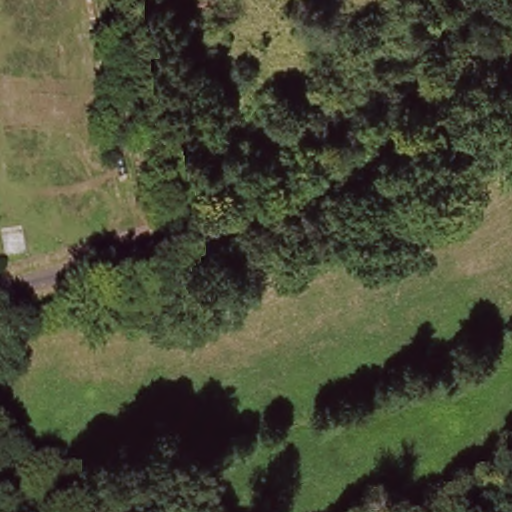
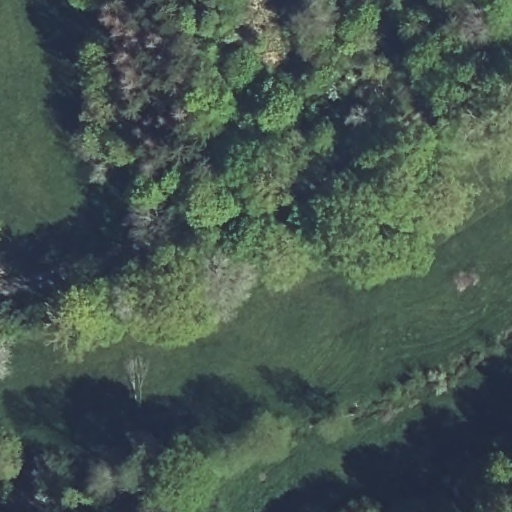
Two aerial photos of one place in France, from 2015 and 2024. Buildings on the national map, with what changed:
unchanged [(214,7),(214,19),(195,19),(194,8),(214,7)]

